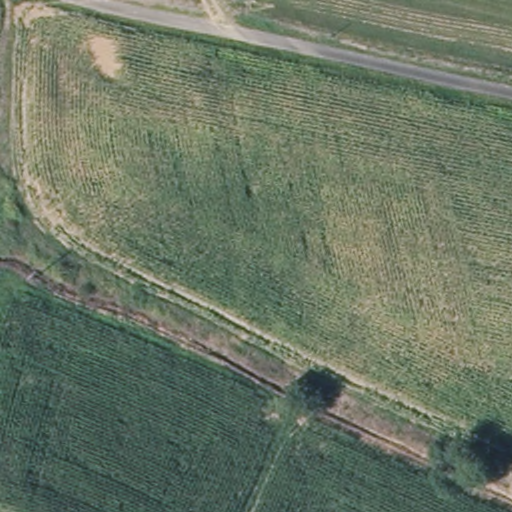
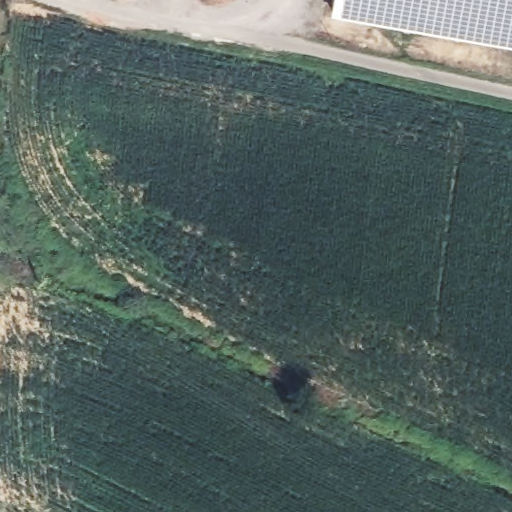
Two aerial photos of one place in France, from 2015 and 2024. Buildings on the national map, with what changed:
new [(329,16),(332,0),(512,0),(512,48),(329,16)]

